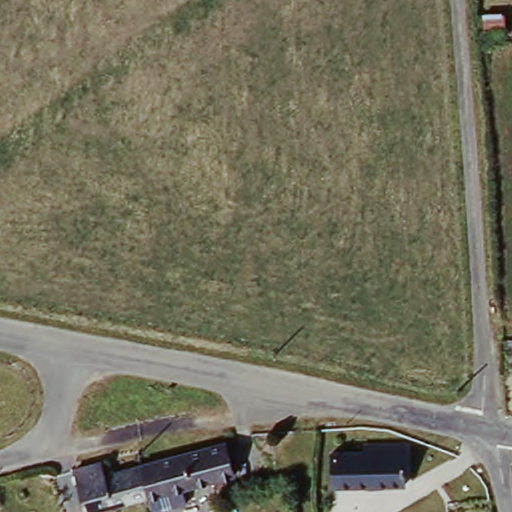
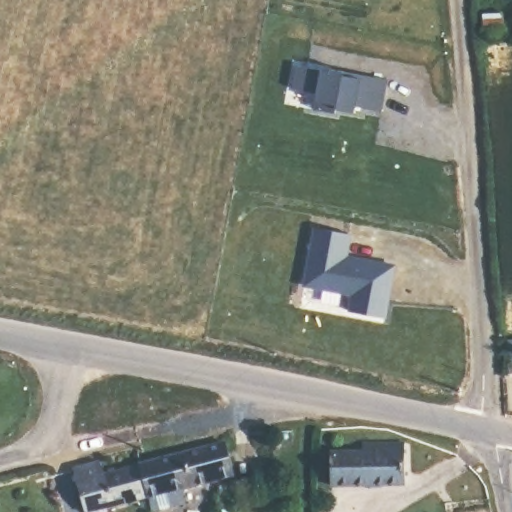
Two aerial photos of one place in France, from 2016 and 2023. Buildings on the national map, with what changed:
new [(322,71),(330,72),(329,76),(330,69),(387,80),(381,111),(355,106),(354,112),(336,110),(335,114),(314,110),(316,94),(292,89),(297,66),(322,71)]
new [(350,234),(347,257),(360,260),(395,266),(385,317),(350,311),(354,294),(305,285),(316,228),(350,234)]
unchanged [(510,337),(512,336),(512,367),(510,367),(510,337)]
unchanged [(229,441),(236,471),(153,493),(144,462),(229,441)]
unchanged [(368,456),(368,446),(407,445),(408,487),(337,487),(336,456),(368,456)]
unchanged [(153,493),(113,504),(115,511),(111,512),(93,512),(79,464),(107,458),(111,472),(144,462),(153,493)]

